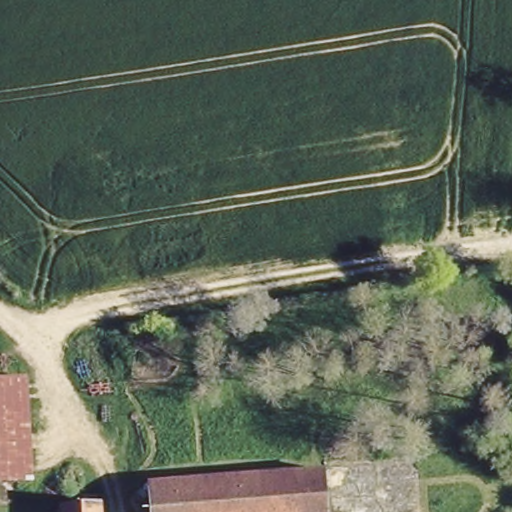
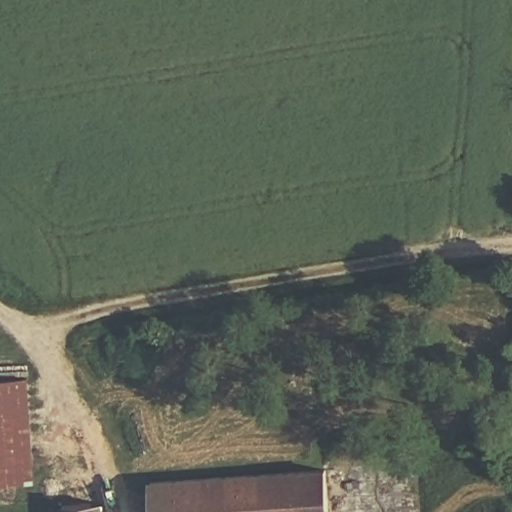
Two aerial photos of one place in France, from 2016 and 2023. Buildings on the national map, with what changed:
unchanged [(0,382),(24,380),(35,480),(0,482),(0,382)]
unchanged [(324,464),(326,512),(143,512),(141,473),(324,464)]
unchanged [(62,508),(97,508),(97,512),(62,512),(62,508)]

